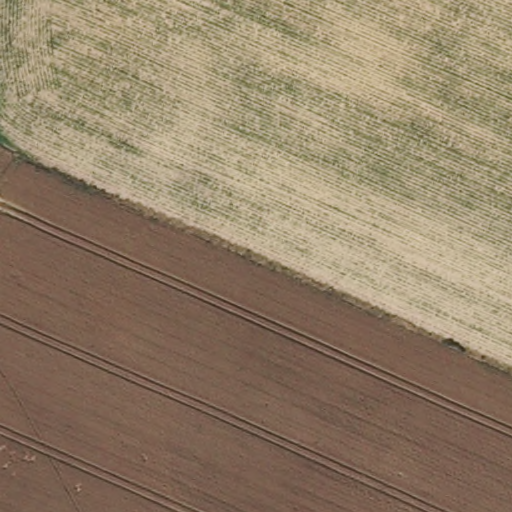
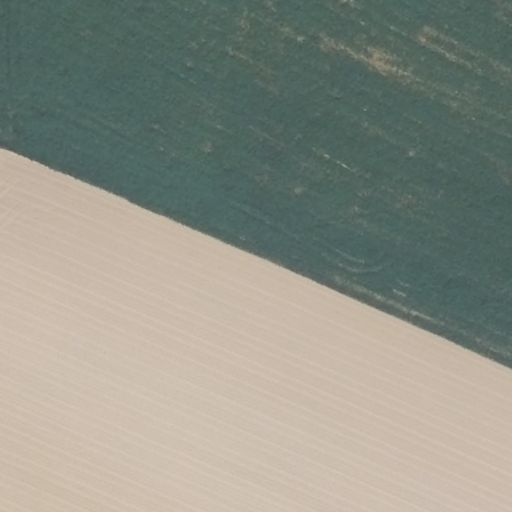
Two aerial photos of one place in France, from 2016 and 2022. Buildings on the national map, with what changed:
[]

